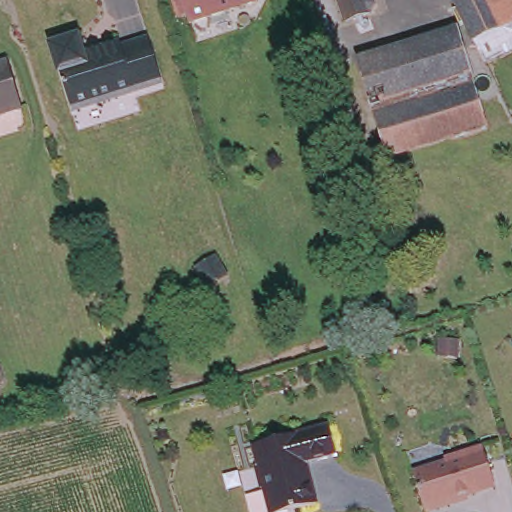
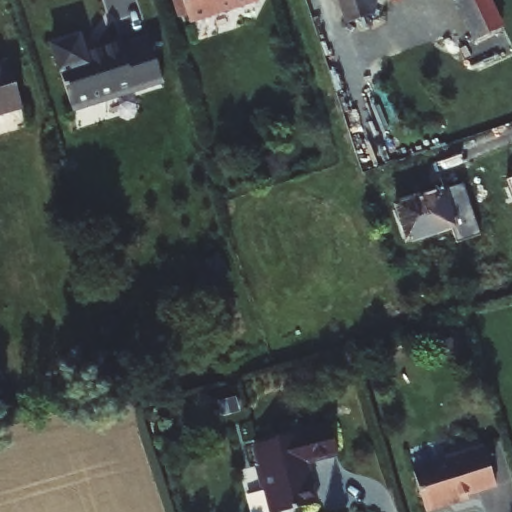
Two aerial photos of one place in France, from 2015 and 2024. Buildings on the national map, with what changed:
unchanged [(180,0),(255,0),(187,22),(180,0)]
unchanged [(349,21),(343,0),(369,0),(374,13),(349,21)]
unchanged [(478,38),(460,0),(492,0),(504,26),(478,38)]
demolished [(489,61),(478,38),(504,26),(492,0),(512,0),(512,50),(489,61)]
demolished [(388,159),(357,58),(458,26),(489,126),(388,159)]
unchanged [(73,40),(78,56),(115,45),(116,50),(143,41),(158,84),(67,113),(46,48),(73,40)]
unchanged [(0,68),(8,66),(22,112),(0,119),(0,68)]
new [(507,180),(512,178),(512,194),(507,180)]
new [(480,235),(457,242),(453,229),(404,244),(391,203),(444,188),(463,183),(480,235)]
unchanged [(230,274),(204,287),(193,267),(217,253),(230,274)]
unchanged [(0,379),(0,369),(3,379),(0,379)]
unchanged [(335,454),(300,463),(305,481),(309,480),(314,503),(280,512),(267,512),(262,489),(258,490),(253,468),(257,467),(251,445),(328,424),(335,454)]
unchanged [(443,463),(441,459),(479,447),(492,485),(444,501),(447,506),(426,512),(422,512),(409,474),(443,463)]

